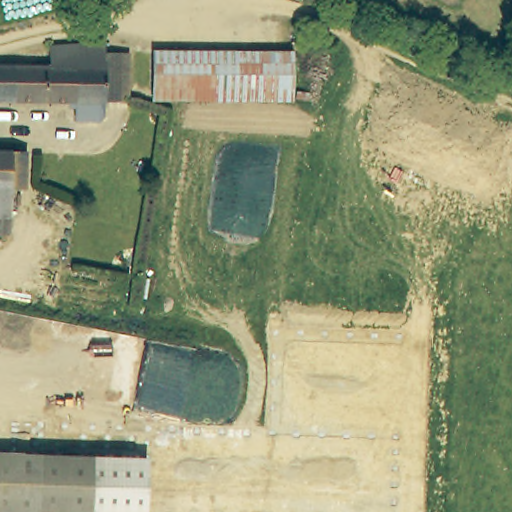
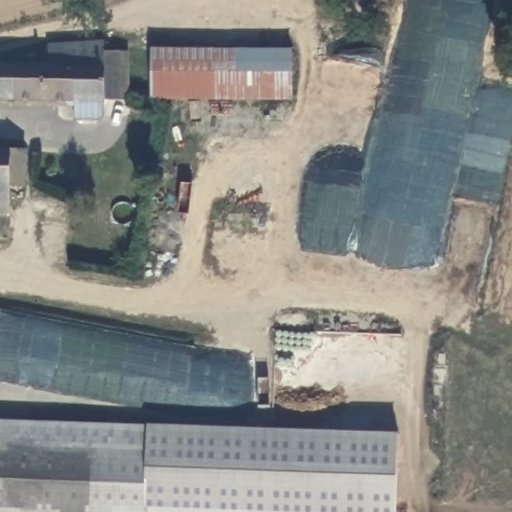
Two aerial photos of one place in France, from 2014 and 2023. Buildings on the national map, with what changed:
unchanged [(54,66),(52,46),(107,42),(107,53),(130,53),(131,101),(102,102),(101,106),(0,102),(0,67),(54,66)]
unchanged [(150,49),(289,49),(289,99),(150,98),(150,49)]
unchanged [(24,153),(24,187),(9,187),(9,235),(0,235),(0,152),(24,153)]
new [(147,425),(397,433),(395,512),(146,512),(146,454),(89,452),(0,450),(0,422),(147,425)]
unchanged [(0,512),(0,450),(89,452),(87,512),(0,512)]
unchanged [(146,454),(146,512),(87,512),(89,452),(146,454)]

